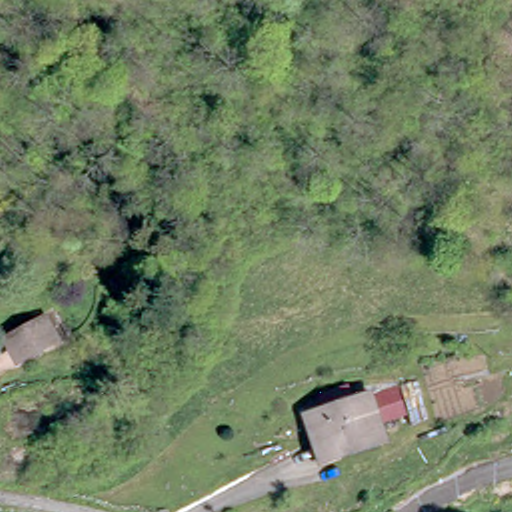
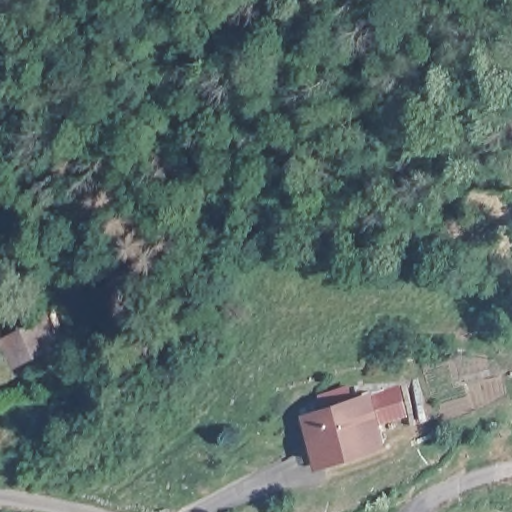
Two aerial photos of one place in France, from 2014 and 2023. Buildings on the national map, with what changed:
unchanged [(146,279),(123,301),(112,287),(134,266),(146,279)]
unchanged [(0,352),(0,339),(23,327),(35,322),(31,314),(43,307),(55,326),(43,334),(48,343),(38,349),(9,365),(2,351),(0,352)]
unchanged [(378,390),(384,407),(359,415),(369,441),(314,464),(297,423),(309,418),(303,402),(331,392),(336,407),(354,400),(378,390)]

